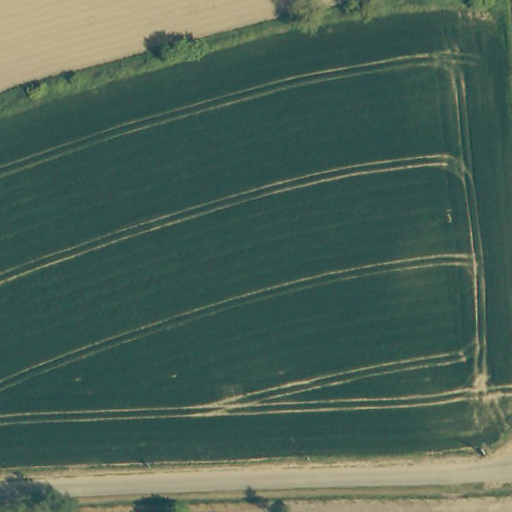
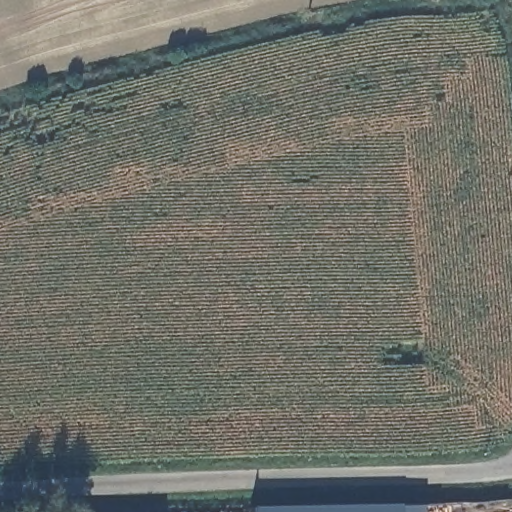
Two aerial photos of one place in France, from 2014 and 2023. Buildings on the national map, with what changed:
new [(249,507),(424,503),(424,512),(250,512),(249,507)]

